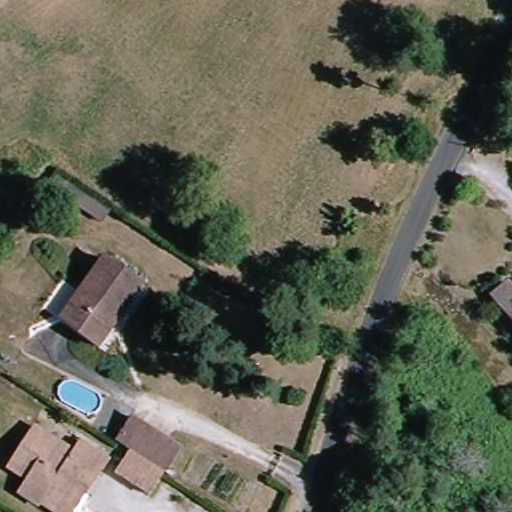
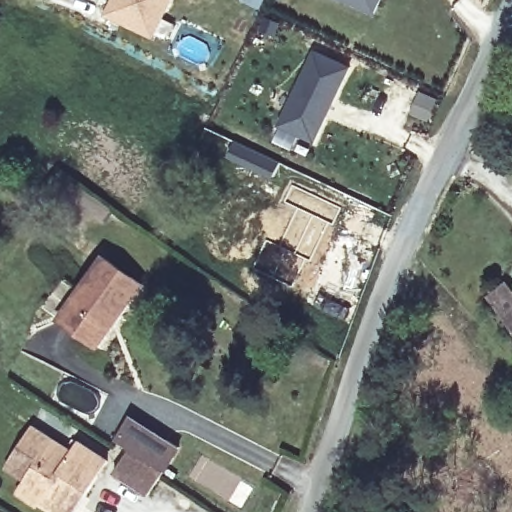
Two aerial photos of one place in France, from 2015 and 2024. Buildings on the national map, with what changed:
new [(168,0),(151,35),(103,12),(109,0),(168,0)]
new [(345,0),(378,0),(372,13),(345,0)]
new [(316,52),(351,68),(316,142),(281,127),(316,52)]
unchanged [(114,347),(74,322),(77,317),(114,255),(154,280),(116,342),(114,347)]
unchanged [(512,297),(512,308),(507,302),(512,297)]
unchanged [(114,475),(129,452),(114,442),(130,417),(154,433),(179,450),(163,474),(148,497),(114,475)]
unchanged [(44,507),(41,511),(21,498),(30,485),(12,472),(38,434),(76,459),(84,447),(113,466),(88,503),(82,512),(51,512),(44,507)]

